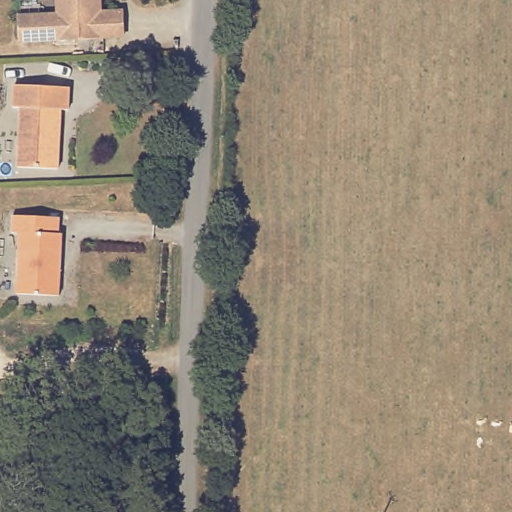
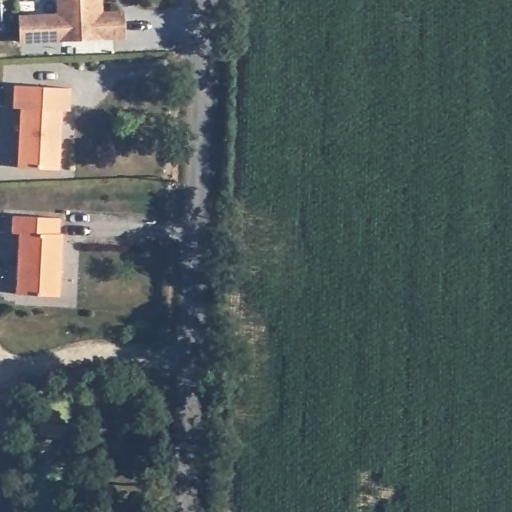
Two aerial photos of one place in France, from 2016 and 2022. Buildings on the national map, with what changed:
unchanged [(122,9),(123,34),(19,39),(18,14),(57,12),(56,0),(100,0),(100,10),(122,9)]
unchanged [(66,83),(66,106),(58,106),(56,167),(17,165),(17,105),(10,105),(12,83),(66,83)]
unchanged [(63,216),(62,232),(65,232),(62,293),(20,291),(22,229),(15,229),(15,213),(63,216)]

